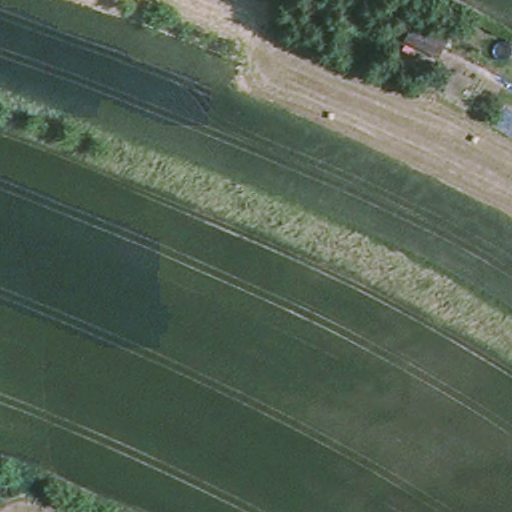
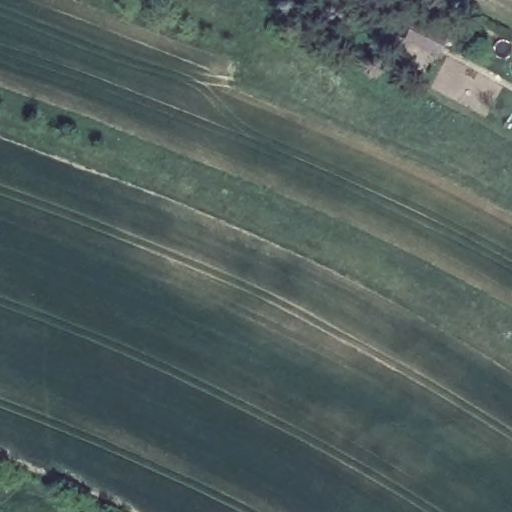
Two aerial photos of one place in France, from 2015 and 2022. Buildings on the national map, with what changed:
unchanged [(419,33),(452,49),(442,68),(410,52),(419,33)]

